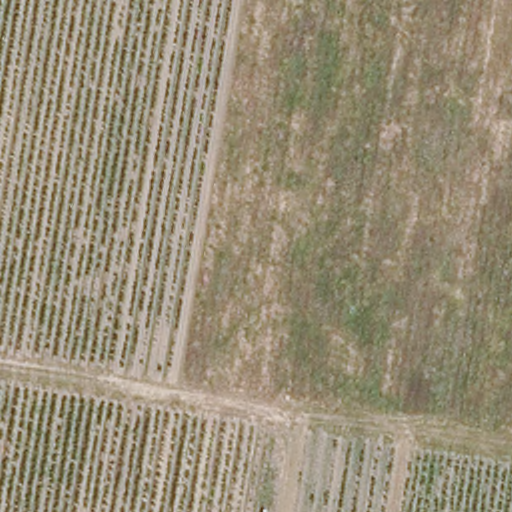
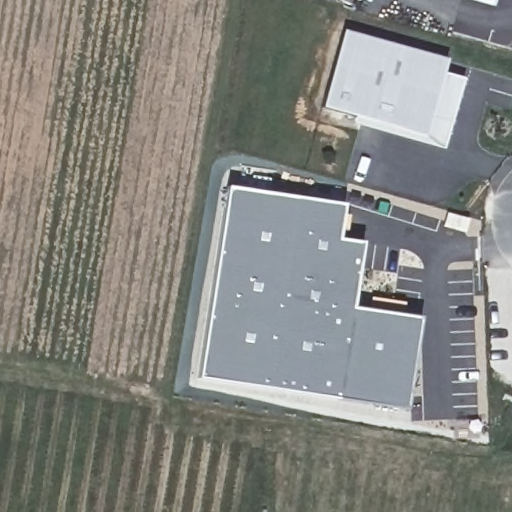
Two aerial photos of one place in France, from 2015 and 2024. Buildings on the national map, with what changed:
new [(468,0),(494,0),(492,6),(468,0)]
new [(344,31),(446,60),(443,72),(463,78),(442,151),(355,125),(356,117),(323,109),(344,31)]
new [(347,210),(343,242),(364,245),(357,313),(426,323),(421,383),(351,373),(348,400),(207,379),(232,192),(347,210)]

